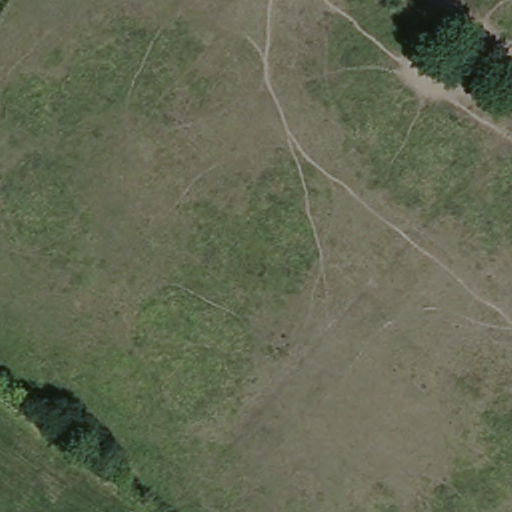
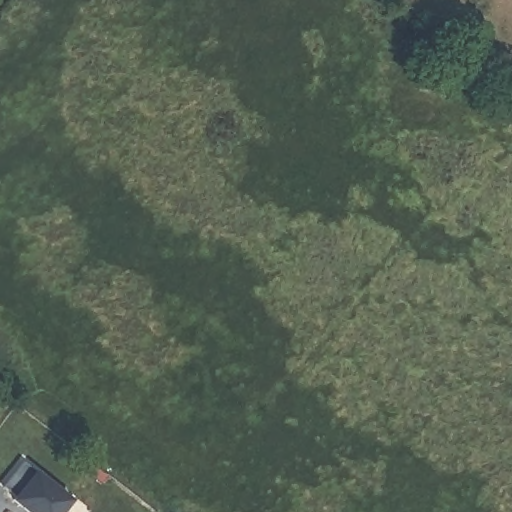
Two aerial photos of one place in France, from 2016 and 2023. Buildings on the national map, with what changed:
new [(63,512),(29,512),(13,500),(17,496),(6,487),(27,458),(75,497),(63,512)]

